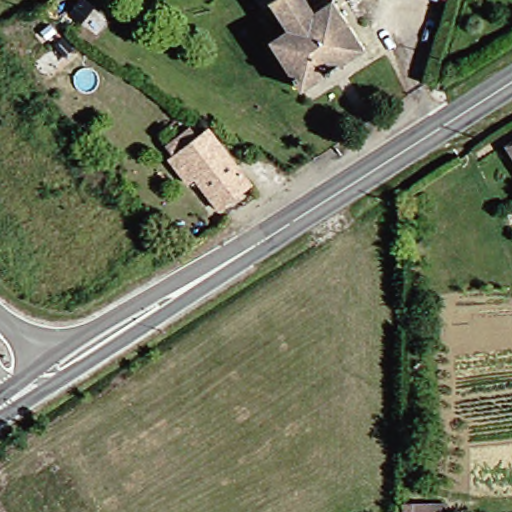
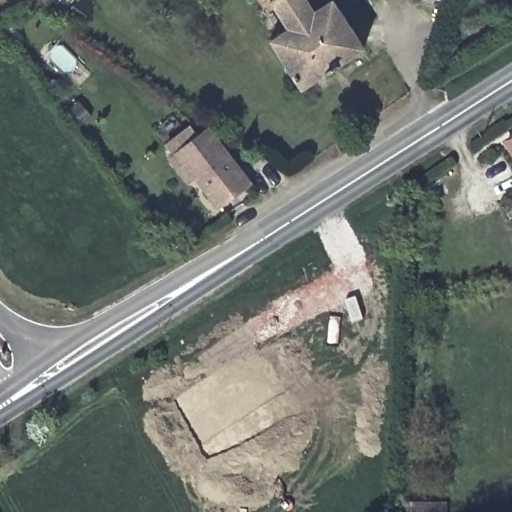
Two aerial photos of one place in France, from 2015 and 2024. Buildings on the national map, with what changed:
unchanged [(91,0),(105,0),(110,4),(95,17),(85,6),(91,0)]
unchanged [(271,37),(286,26),(272,2),(265,5),(262,0),(320,0),(323,5),(331,0),(340,0),(367,47),(302,88),(271,37)]
unchanged [(452,4),(442,0),(453,0),(452,4)]
unchanged [(227,211),(202,175),(193,181),(176,156),(218,130),(259,190),(227,211)]

